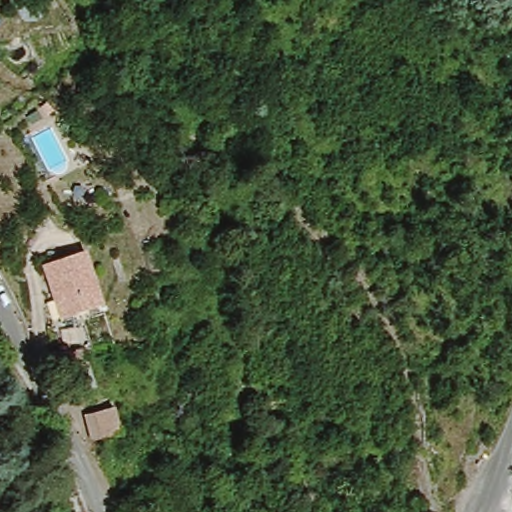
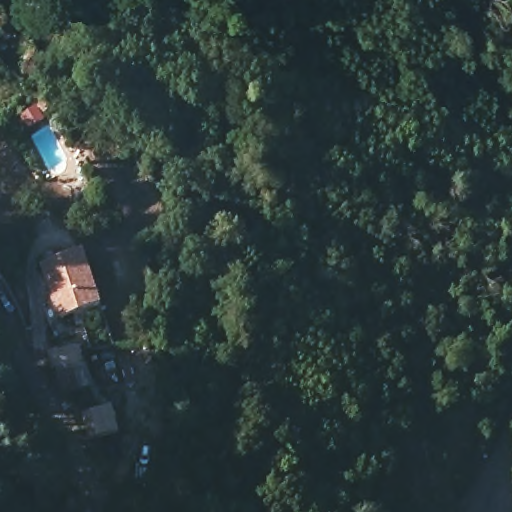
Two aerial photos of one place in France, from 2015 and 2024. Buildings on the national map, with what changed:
unchanged [(80,248),(102,296),(62,312),(41,264),(80,248)]
unchanged [(112,404),(120,434),(93,439),(87,410),(112,404)]

